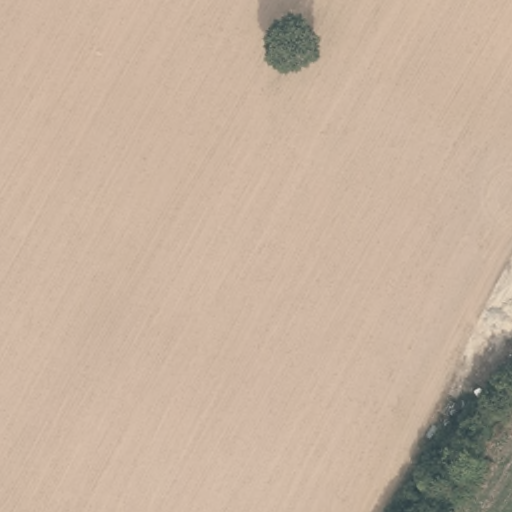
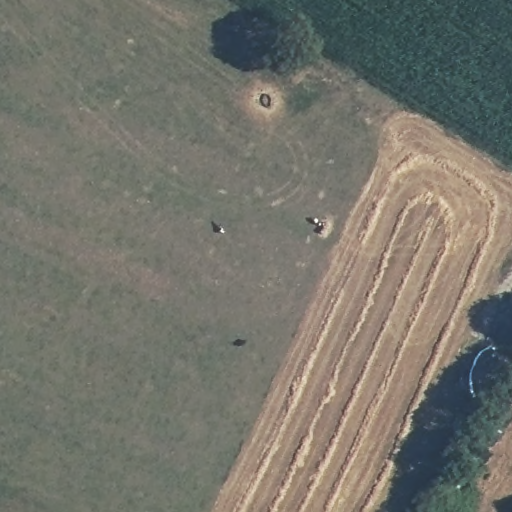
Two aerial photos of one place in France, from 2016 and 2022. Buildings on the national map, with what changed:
[]

